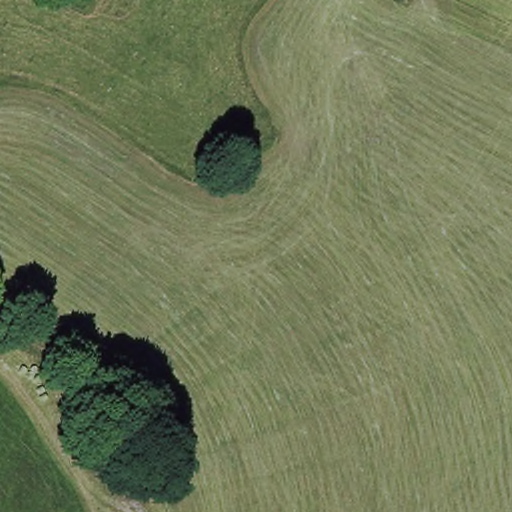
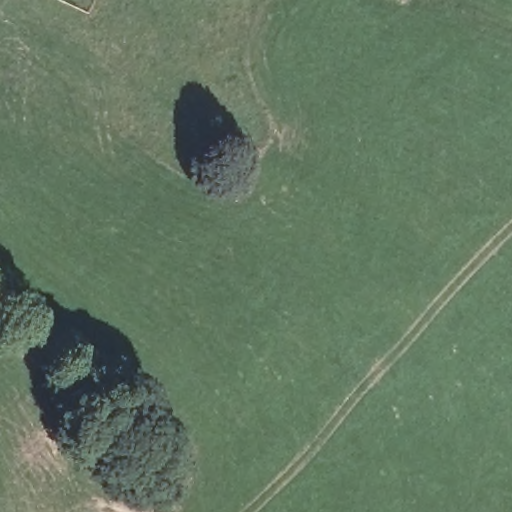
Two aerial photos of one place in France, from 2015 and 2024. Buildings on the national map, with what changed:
[]

